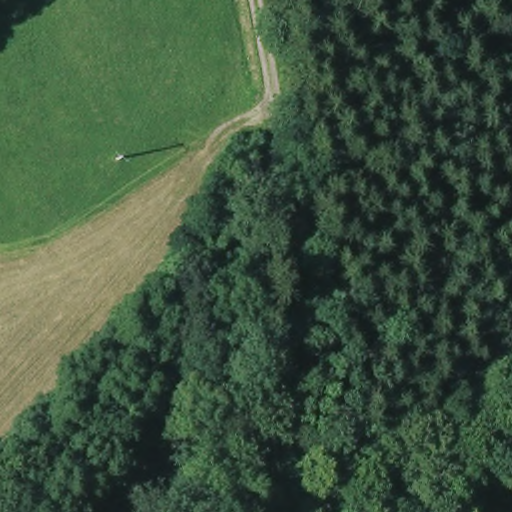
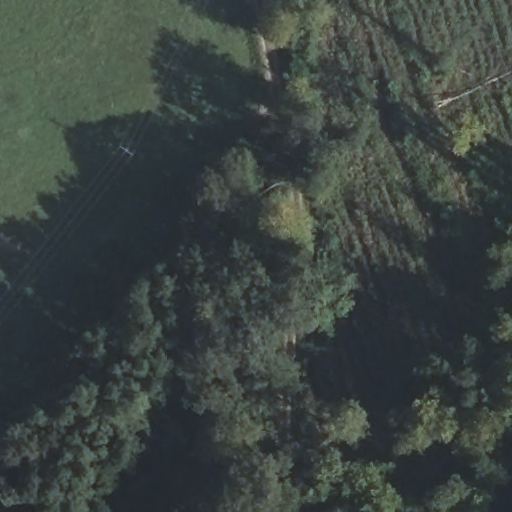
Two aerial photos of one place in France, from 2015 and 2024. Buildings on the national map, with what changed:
[]

